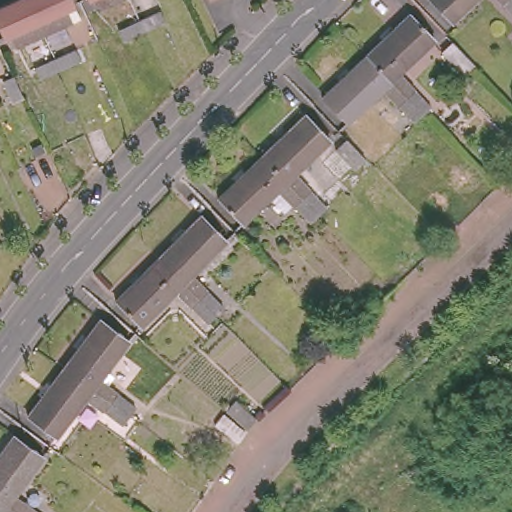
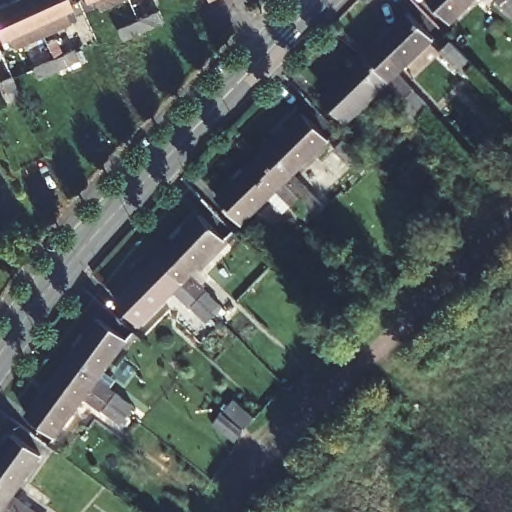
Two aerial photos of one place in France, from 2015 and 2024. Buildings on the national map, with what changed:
unchanged [(11,33),(3,36),(0,29),(0,6),(13,0),(29,0),(33,7),(44,34),(16,47),(11,33)]
unchanged [(67,7),(73,22),(44,34),(33,7),(29,0),(72,0),(73,4),(67,7)]
unchanged [(207,0),(211,0),(208,2),(207,0)]
unchanged [(433,0),(468,0),(449,17),(433,0)]
unchanged [(499,0),(512,0),(512,14),(499,0)]
unchanged [(407,8),(432,34),(396,67),(405,77),(429,103),(422,111),(364,50),(407,8)]
unchanged [(115,34),(136,25),(157,16),(161,26),(141,36),(119,45),(115,34)]
unchanged [(422,111),(414,119),(388,92),(379,84),(344,117),(321,92),(364,50),(422,111)]
unchanged [(29,72),(50,63),(72,54),(77,65),(55,74),(34,84),(29,72)]
unchanged [(18,102),(5,107),(0,94),(0,85),(8,82),(9,85),(18,102)]
unchanged [(259,151),(302,109),(328,134),(293,167),(301,177),(326,204),(317,212),(259,151)]
unchanged [(92,164),(83,174),(63,157),(73,146),(92,164)]
unchanged [(317,212),(309,219),(284,194),(275,184),(239,219),(216,194),(259,151),(317,212)]
unchanged [(54,205),(44,216),(25,199),(35,187),(54,205)]
unchanged [(198,210),(223,235),(191,268),(199,277),(223,303),(214,312),(156,252),(198,210)]
unchanged [(214,312),(206,320),(182,295),(173,286),(138,320),(113,296),(156,252),(214,312)]
unchanged [(97,313),(125,335),(96,373),(106,381),(134,403),(127,412),(60,362),(97,313)]
unchanged [(127,412),(120,421),(92,399),(83,392),(53,432),(24,409),(60,362),(127,412)]
unchanged [(0,443),(10,429),(39,450),(11,489),(21,497),(41,512),(22,512),(0,496),(0,443)]
unchanged [(0,510),(0,496),(22,512),(3,512),(0,510)]

